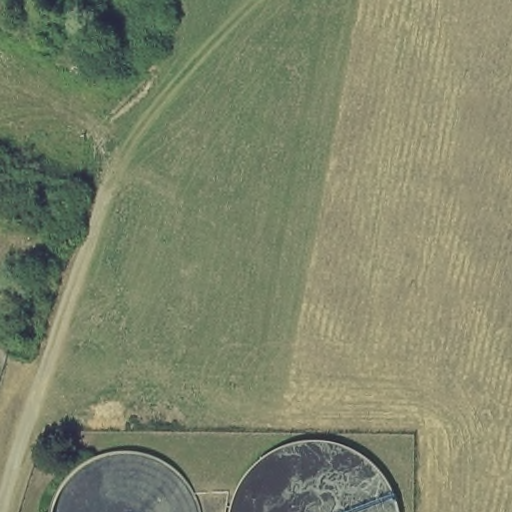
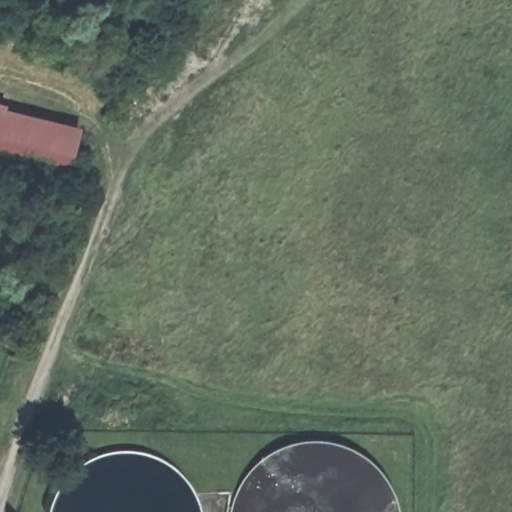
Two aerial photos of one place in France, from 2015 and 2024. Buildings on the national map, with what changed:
new [(0,138),(0,107),(82,126),(75,154),(0,138)]

